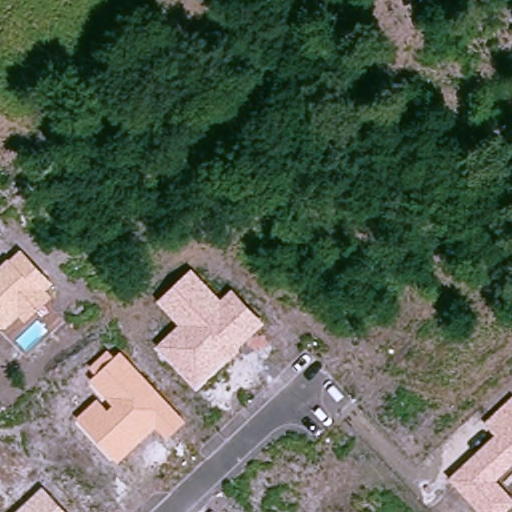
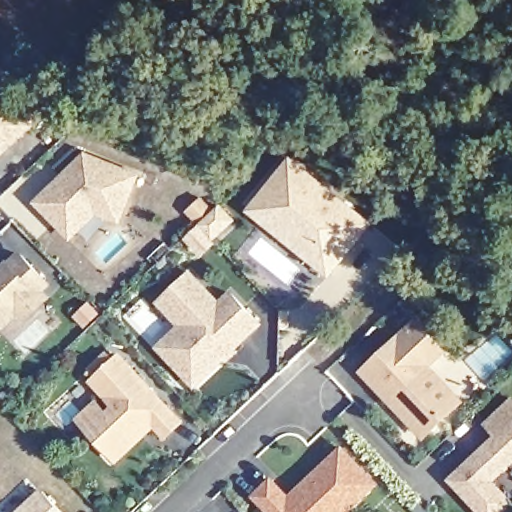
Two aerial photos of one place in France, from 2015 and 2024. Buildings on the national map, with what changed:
new [(31,125),(0,154),(0,92),(31,125)]
new [(142,175),(122,224),(98,215),(72,240),(33,204),(86,153),(142,175)]
new [(291,153),(373,223),(328,278),(244,210),(291,153)]
new [(195,224),(184,211),(200,195),(213,208),(220,201),(239,221),(199,258),(181,238),(195,224)]
unchanged [(9,257),(11,260),(22,249),(55,283),(47,291),(53,297),(25,323),(19,316),(5,328),(0,328),(0,266),(9,257)]
unchanged [(221,298),(231,289),(265,323),(238,348),(241,351),(230,364),(225,360),(196,386),(157,345),(179,325),(157,301),(191,269),(221,298)]
new [(448,414),(424,437),(363,372),(416,323),(443,352),(429,366),(462,401),(448,414)]
unchanged [(186,421),(167,439),(155,427),(118,464),(75,418),(97,398),(108,409),(112,405),(91,380),(97,374),(90,366),(109,350),(115,357),(121,351),(186,421)]
unchanged [(512,396),(512,466),(497,480),(512,496),(512,507),(507,512),(479,512),(448,477),(495,434),(483,422),(512,396)]
new [(273,480),(290,499),(343,450),(376,485),(347,512),(273,512),(257,495),(273,480)]
unchanged [(67,512),(15,512),(42,486),(67,512)]

